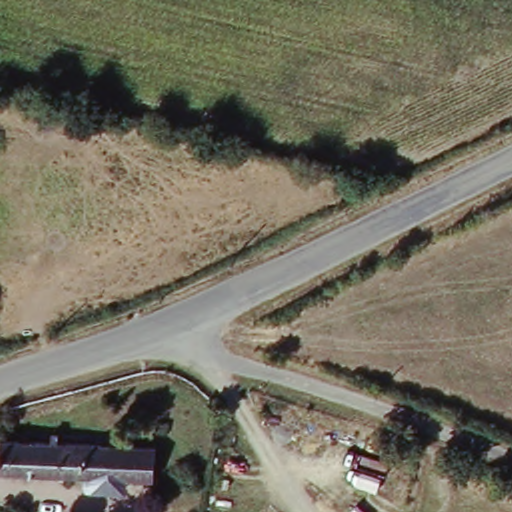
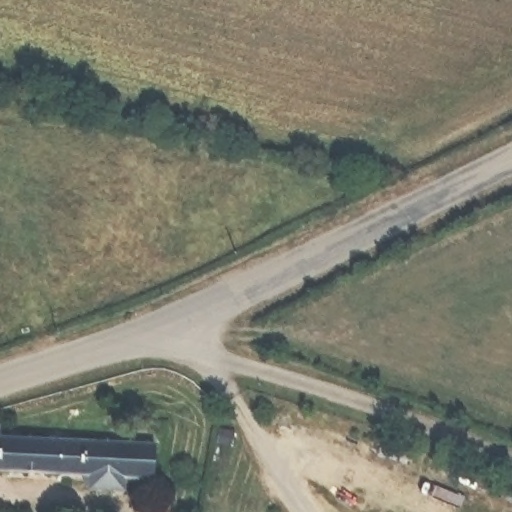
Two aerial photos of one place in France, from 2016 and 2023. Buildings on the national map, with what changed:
unchanged [(0,445),(0,441),(158,449),(155,482),(0,471),(0,445)]

